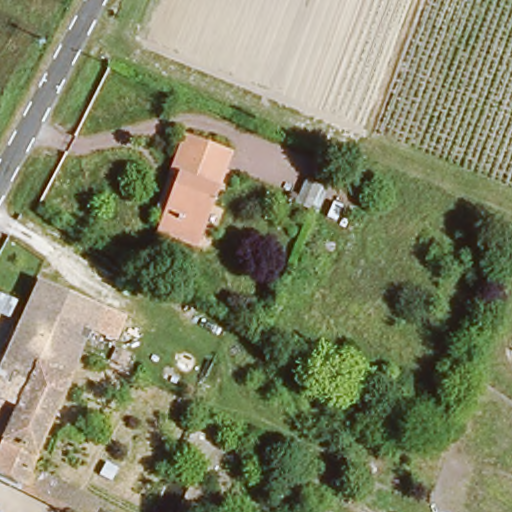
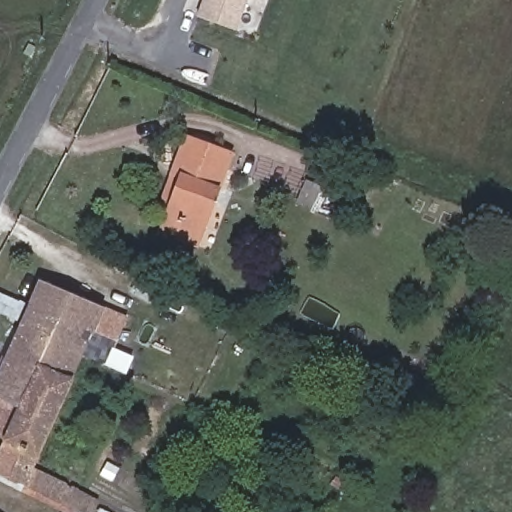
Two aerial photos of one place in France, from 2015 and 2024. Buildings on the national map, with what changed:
new [(202,19),(207,0),(249,0),(247,7),(239,31),(202,19)]
unchanged [(165,214),(156,211),(182,133),(235,151),(220,193),(210,218),(199,249),(154,236),(165,214)]
unchanged [(68,294),(99,308),(89,331),(77,355),(65,378),(51,372),(37,367),(27,388),(20,402),(17,407),(0,400),(0,362),(27,303),(37,281),(68,294)]
unchanged [(26,467),(67,486),(65,490),(87,503),(86,507),(96,512),(73,512),(0,474),(0,446),(2,440),(0,439),(0,400),(17,407),(20,402),(27,388),(37,367),(51,372),(65,378),(45,426),(26,467)]

